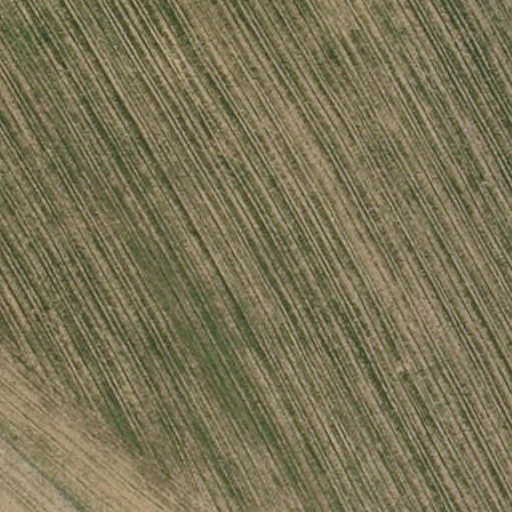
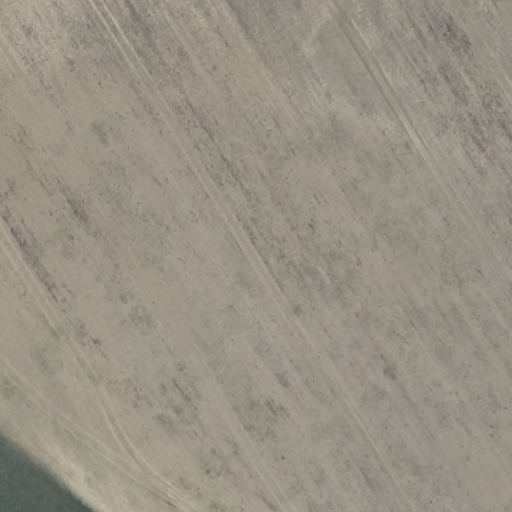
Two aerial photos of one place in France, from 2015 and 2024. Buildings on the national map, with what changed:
[]

